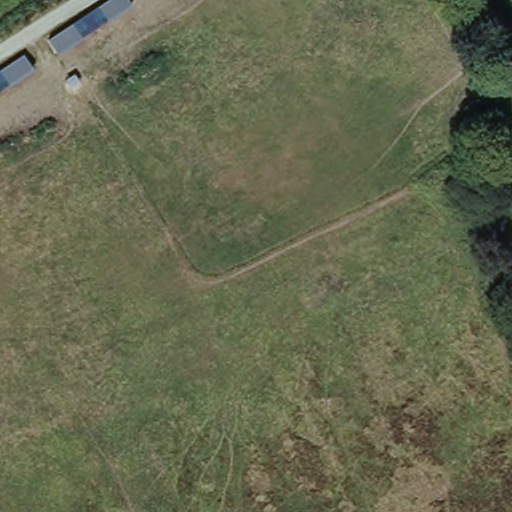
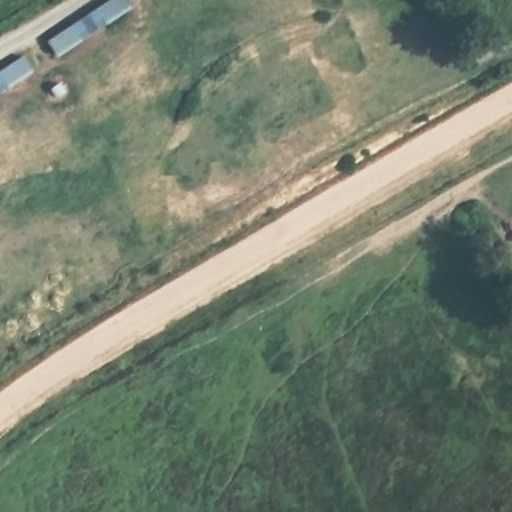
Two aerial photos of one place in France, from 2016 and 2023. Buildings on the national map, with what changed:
unchanged [(103,0),(130,0),(133,5),(106,18),(97,3),(103,0)]
unchanged [(73,22),(83,38),(57,52),(48,38),(73,22)]
unchanged [(24,55),(34,70),(9,82),(0,70),(24,55)]

